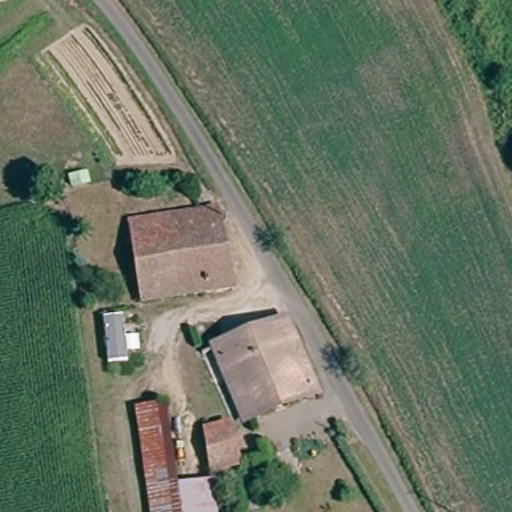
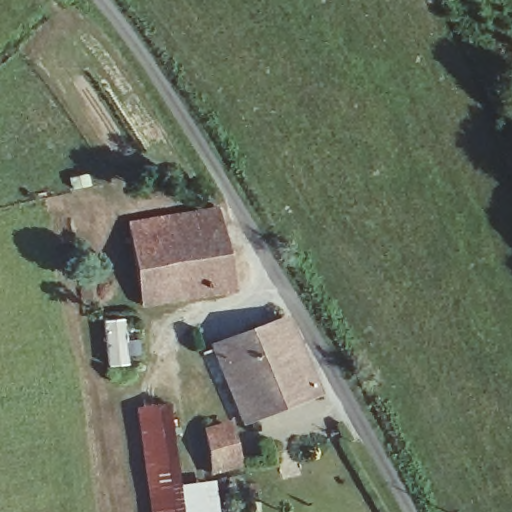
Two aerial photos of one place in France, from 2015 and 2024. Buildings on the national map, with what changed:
unchanged [(216,219),(225,289),(198,292),(146,299),(136,224),(215,217),(216,219)]
unchanged [(240,422),(219,363),(216,354),(220,352),(288,325),(317,392),(240,422)]
unchanged [(134,411),(170,407),(182,484),(143,489),(134,411)]
unchanged [(207,430),(233,426),(240,465),(214,472),(207,430)]
unchanged [(214,482),(219,512),(146,512),(143,489),(182,484),(214,482)]

